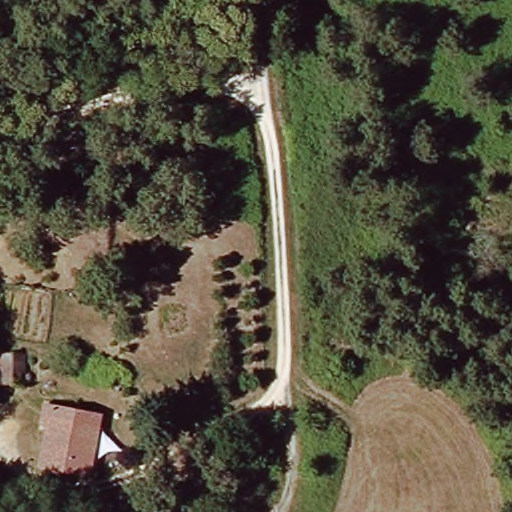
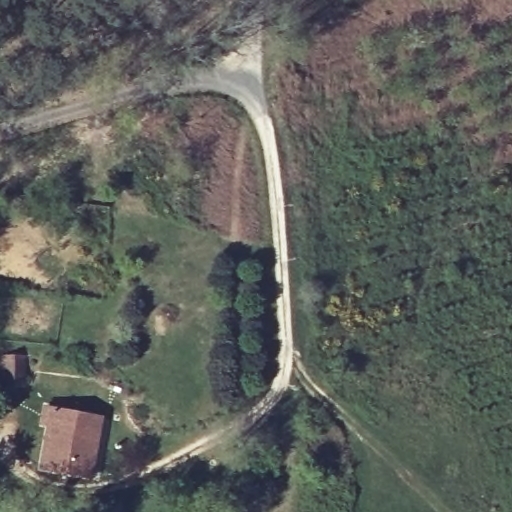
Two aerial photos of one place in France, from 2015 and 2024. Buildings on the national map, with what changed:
unchanged [(13,386),(0,386),(0,356),(15,357),(13,382),(13,386)]
unchanged [(40,431),(43,413),(95,426),(82,482),(35,471),(45,432),(40,431)]

